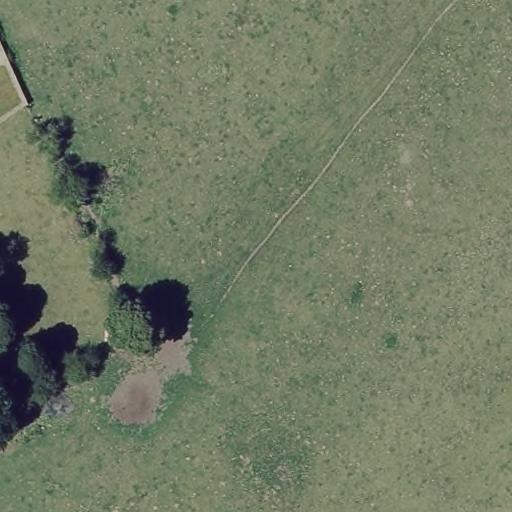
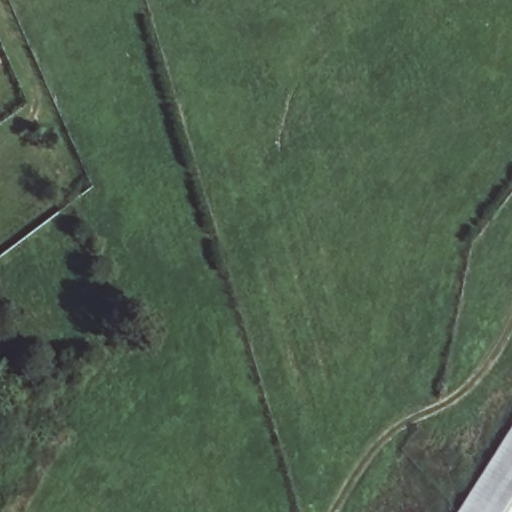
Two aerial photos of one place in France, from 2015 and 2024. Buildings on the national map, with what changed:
new [(512,512),(452,512),(512,416),(512,512)]

